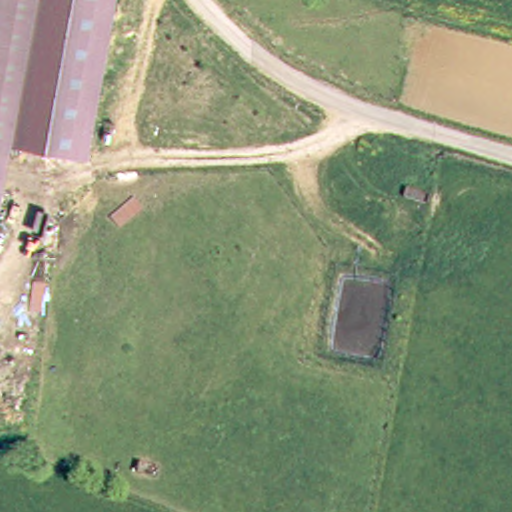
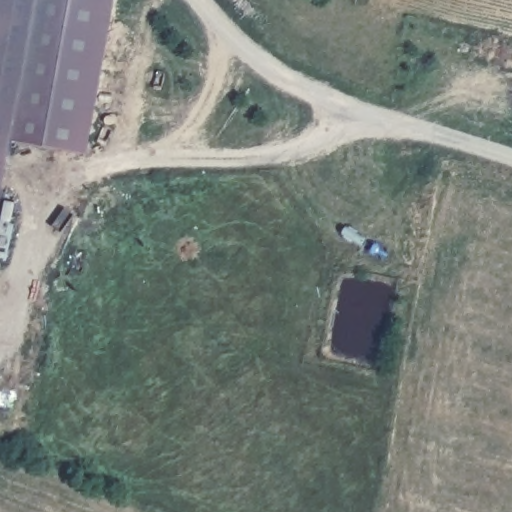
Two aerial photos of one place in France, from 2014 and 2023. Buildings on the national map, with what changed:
unchanged [(8,138),(0,182),(0,0),(35,0),(8,138)]
unchanged [(93,153),(8,138),(35,0),(119,0),(93,153)]

